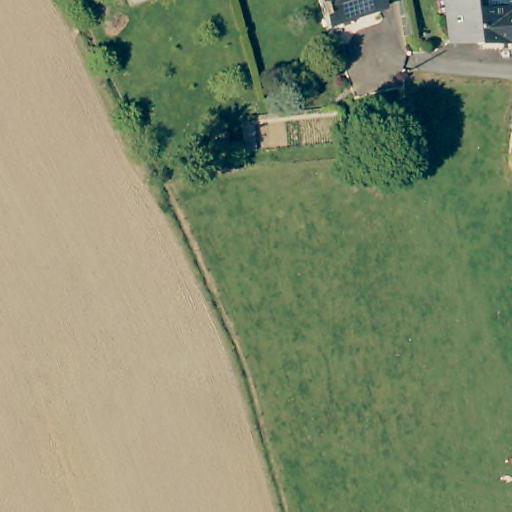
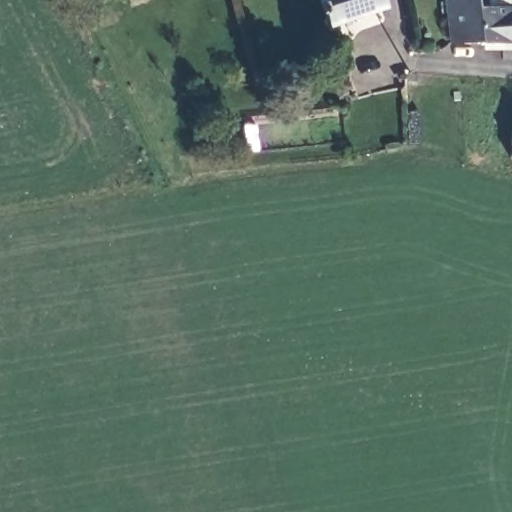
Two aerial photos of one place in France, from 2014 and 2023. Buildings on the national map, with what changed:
unchanged [(384,9),(330,27),(320,0),(381,0),(384,9)]
unchanged [(476,8),(480,46),(448,49),(446,2),(467,0),(477,0),(476,5),(476,8)]
unchanged [(512,45),(480,46),(476,8),(512,6),(512,45)]
unchanged [(510,124),(512,112),(512,161),(507,161),(510,124)]

